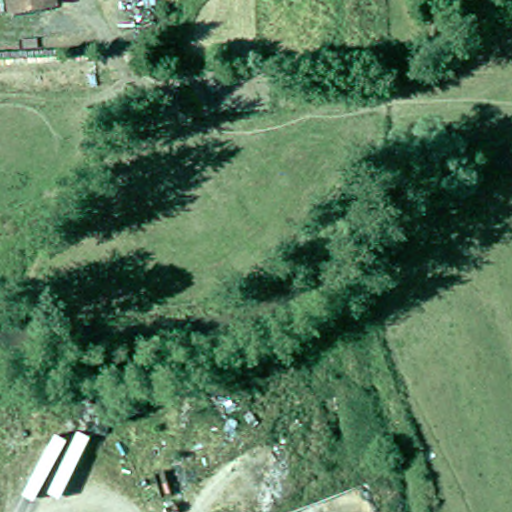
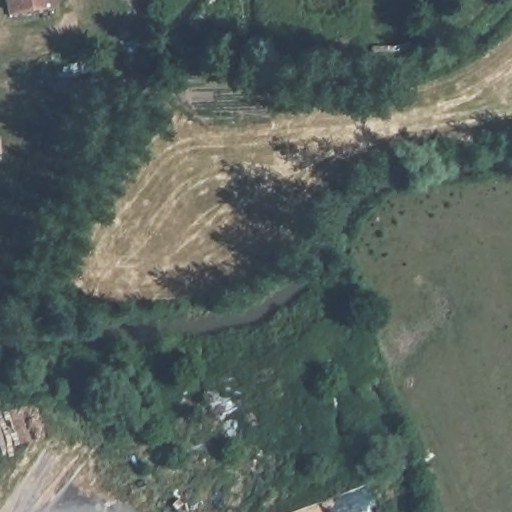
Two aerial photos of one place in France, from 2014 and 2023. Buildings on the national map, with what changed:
unchanged [(13,14),(10,0),(55,0),(56,6),(13,14)]

